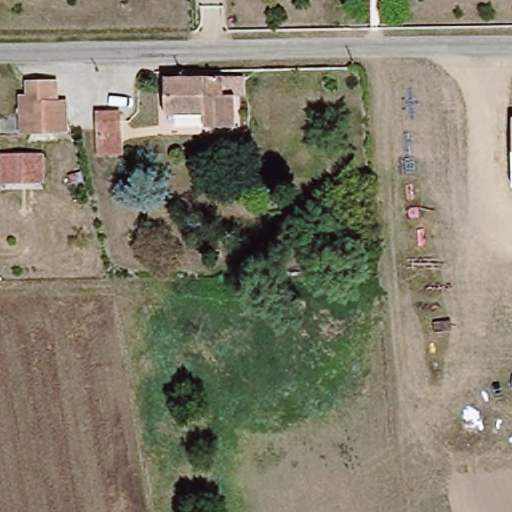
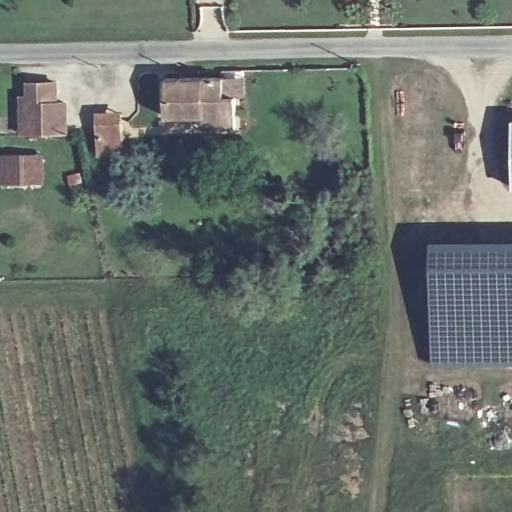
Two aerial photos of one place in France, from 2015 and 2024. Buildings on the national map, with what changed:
unchanged [(200,123),(200,117),(155,117),(155,79),(216,79),(242,77),(242,90),(235,90),(234,122),(200,123)]
unchanged [(67,140),(24,141),(24,107),(30,107),(31,86),(60,87),(59,106),(66,107),(67,140)]
unchanged [(100,120),(125,122),(124,144),(124,162),(100,164),(100,144),(100,120)]
unchanged [(2,169),(2,156),(35,156),(42,157),(42,182),(34,181),(11,180),(2,180),(2,169)]
new [(512,237),(512,365),(430,365),(430,237),(512,237)]

